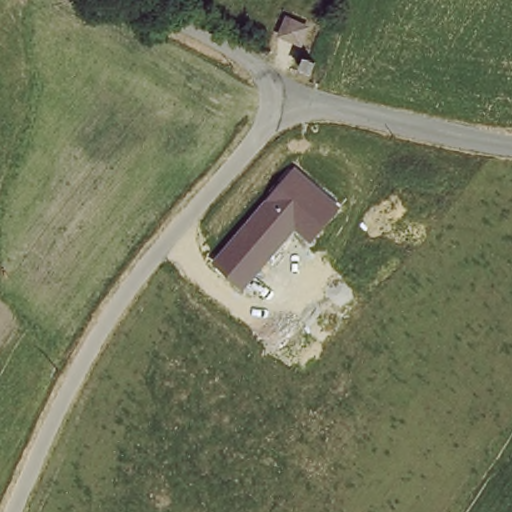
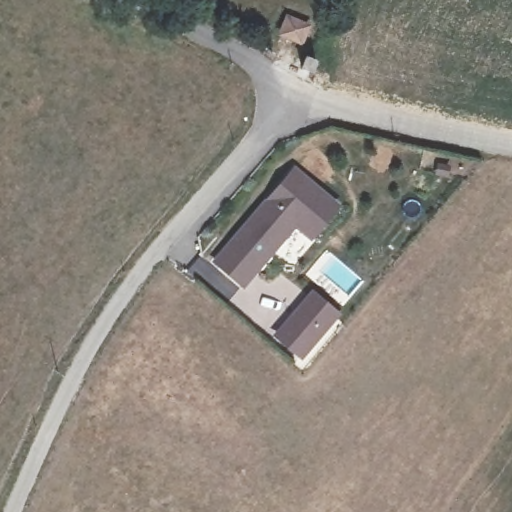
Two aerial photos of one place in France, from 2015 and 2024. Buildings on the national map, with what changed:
unchanged [(278,35),(287,13),(311,23),(303,46),(278,35)]
unchanged [(213,261),(296,166),(341,205),(311,241),(297,228),(244,288),(213,261)]
new [(312,289),(341,314),(301,361),(272,335),(312,289)]

